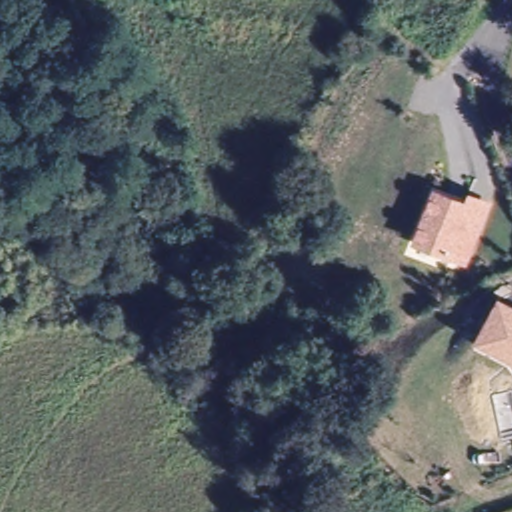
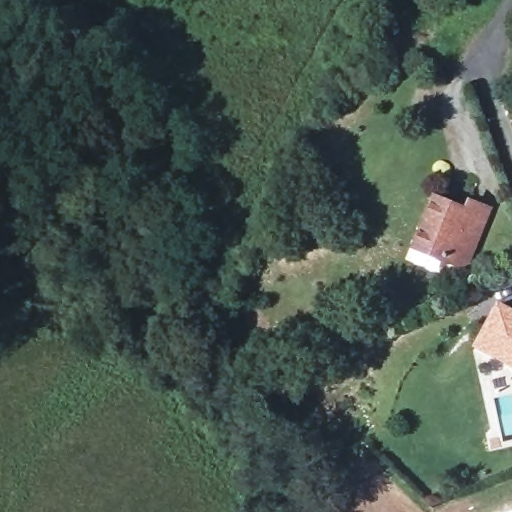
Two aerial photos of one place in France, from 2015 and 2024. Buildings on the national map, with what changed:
unchanged [(435,198),(465,210),(468,202),(487,210),(465,266),(415,246),(435,198)]
unchanged [(512,305),(512,356),(498,348),(482,340),(491,322),(503,301),(512,305)]

